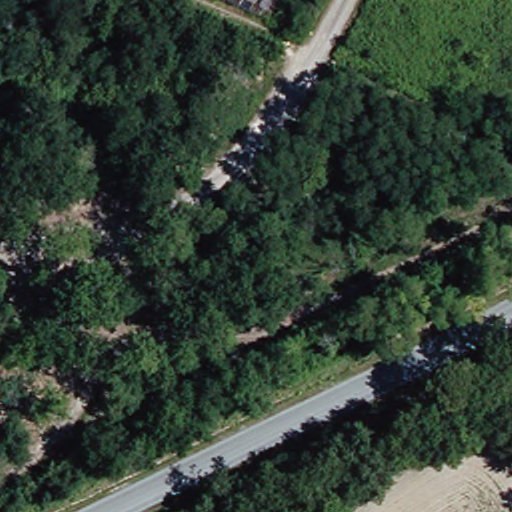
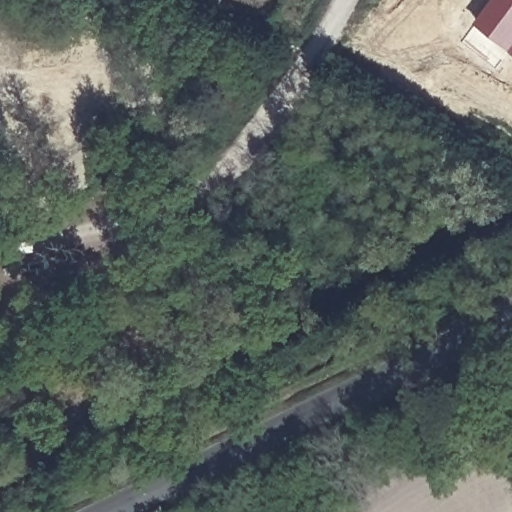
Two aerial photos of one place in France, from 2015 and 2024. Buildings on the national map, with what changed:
new [(476,23),(493,0),(512,0),(512,51),(511,50),(476,23)]

